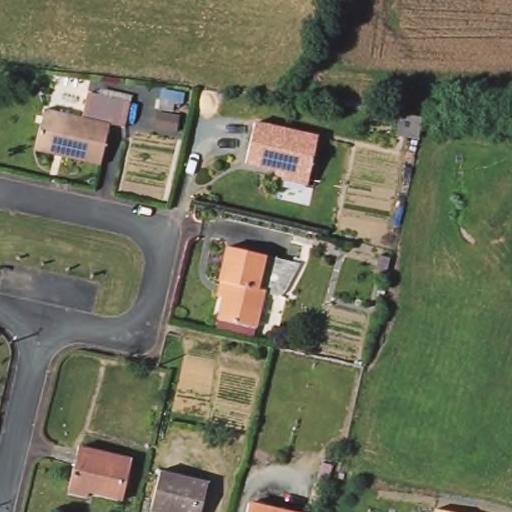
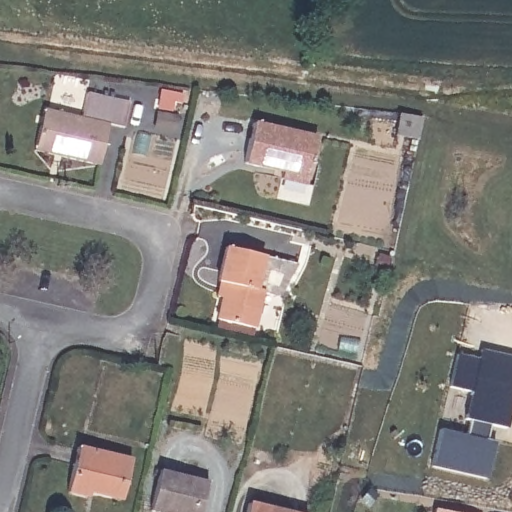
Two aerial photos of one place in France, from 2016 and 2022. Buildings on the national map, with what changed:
unchanged [(86,95),(131,107),(125,132),(108,128),(80,121),(86,95)]
unchanged [(108,128),(99,165),(35,149),(44,112),(80,121),(108,128)]
unchanged [(280,178),(282,168),(243,159),(253,122),(316,137),(308,174),(305,184),(280,178)]
unchanged [(223,250),(294,265),(273,294),(260,290),(252,326),(215,317),(223,280),(215,278),(223,250)]
new [(441,429),(466,435),(469,419),(464,418),(471,390),(452,386),(460,353),(480,357),(481,349),(512,356),(512,396),(505,428),(491,425),(489,440),(495,443),(487,478),(435,466),(441,429)]
unchanged [(77,445),(131,457),(123,496),(90,489),(88,497),(66,492),(77,445)]
unchanged [(206,484),(201,512),(154,512),(161,475),(206,484)]
unchanged [(291,512),(246,512),(248,502),(291,512)]
unchanged [(431,512),(431,510),(445,512),(431,512)]

